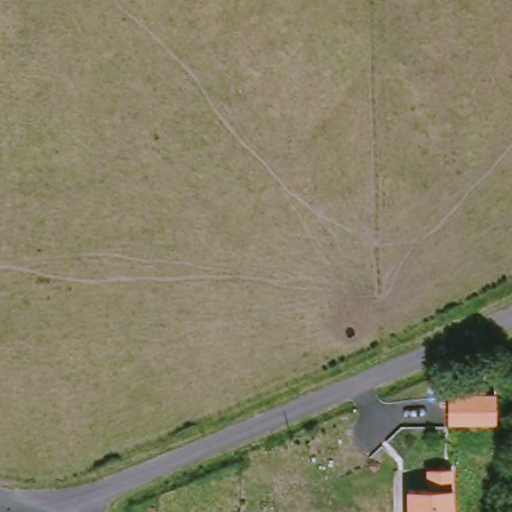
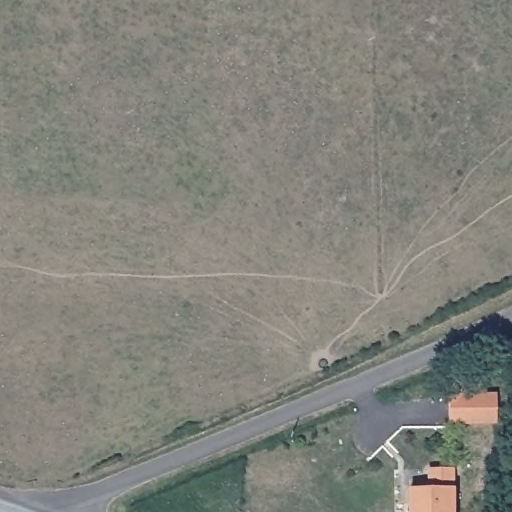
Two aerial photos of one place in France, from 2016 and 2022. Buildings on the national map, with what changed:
unchanged [(496,428),(451,427),(451,396),(497,396),(496,428)]
unchanged [(424,489),(425,470),(452,472),(453,512),(407,512),(407,493),(424,489)]

